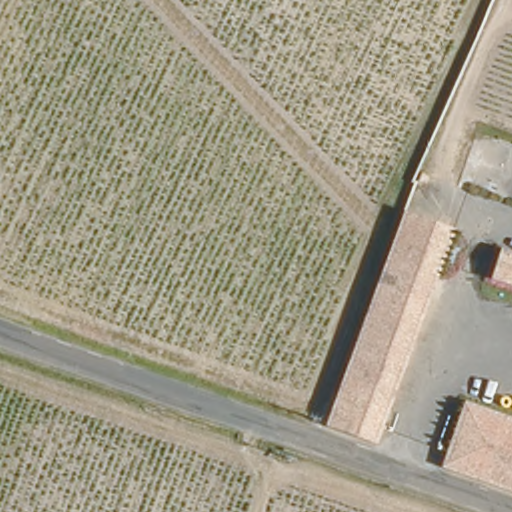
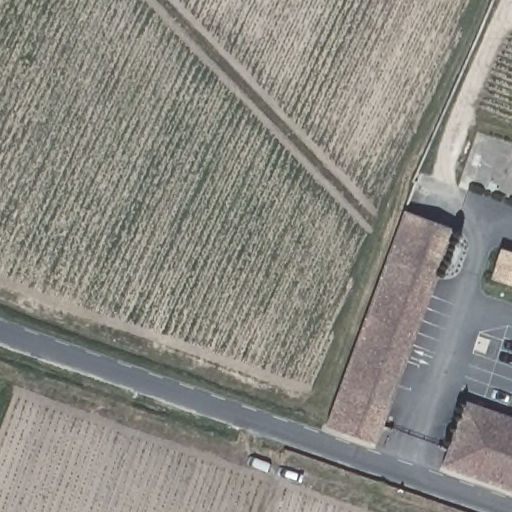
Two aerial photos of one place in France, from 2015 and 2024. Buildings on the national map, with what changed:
unchanged [(397,230),(406,206),(455,223),(416,330),(368,312),(397,230)]
unchanged [(495,243),(512,248),(512,279),(486,271),(495,243)]
unchanged [(416,330),(377,438),(329,421),(368,312),(416,330)]
unchanged [(465,399),(512,416),(512,488),(442,463),(465,399)]

